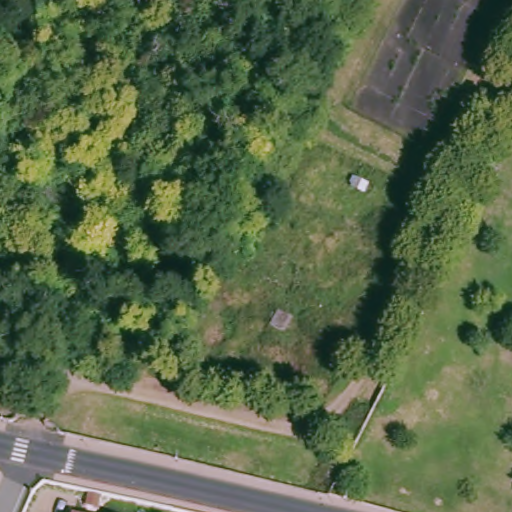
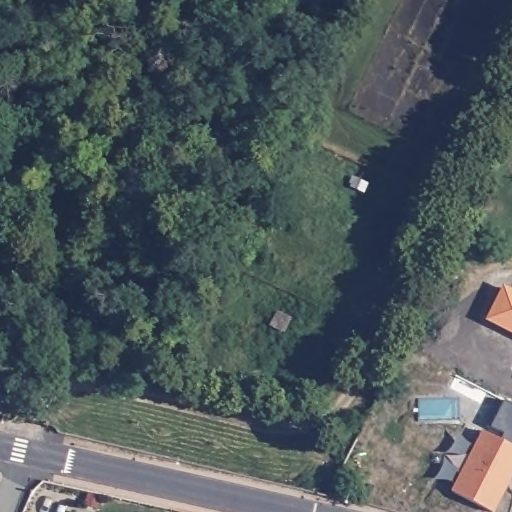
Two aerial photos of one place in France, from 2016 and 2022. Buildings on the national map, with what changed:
new [(483,432),(512,447),(512,464),(505,479),(509,481),(493,512),(491,512),(452,493),(483,432)]

